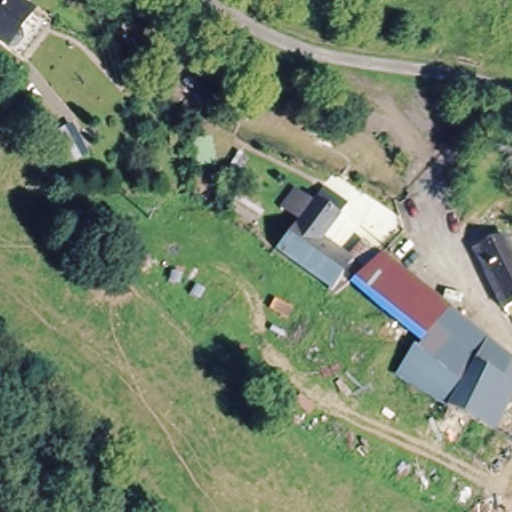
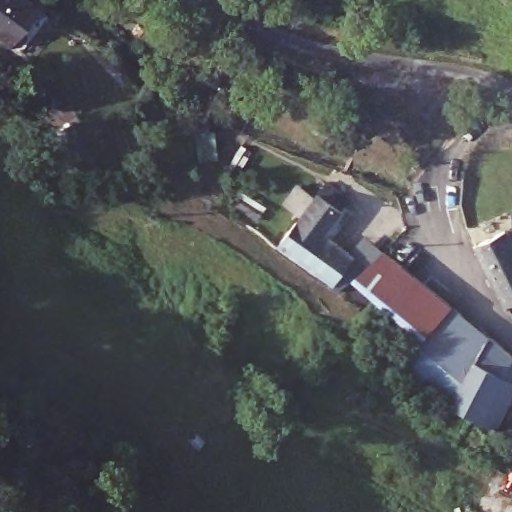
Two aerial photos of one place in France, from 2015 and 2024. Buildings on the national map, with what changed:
unchanged [(29,0),(35,4),(22,27),(24,30),(25,35),(20,42),(14,44),(0,35),(0,0),(29,0)]
unchanged [(48,138),(65,125),(86,152),(70,165),(48,138)]
unchanged [(380,250),(361,263),(335,285),(273,242),(296,211),(280,200),(292,182),(310,193),(322,178),(345,197),(320,231),(347,251),(359,235),(380,250)]
unchanged [(512,253),(512,305),(504,309),(485,273),(476,256),(473,246),(501,234),(512,253)]
unchanged [(360,278),(381,252),(444,302),(422,329),(360,278)]
unchanged [(417,336),(422,329),(444,302),(466,319),(481,334),(461,370),(417,336)]
unchanged [(443,401),(455,382),(461,370),(481,334),(510,354),(512,368),(512,384),(498,408),(488,426),(481,422),(443,401)]
unchanged [(417,336),(461,370),(455,382),(443,401),(441,400),(395,365),(417,336)]

